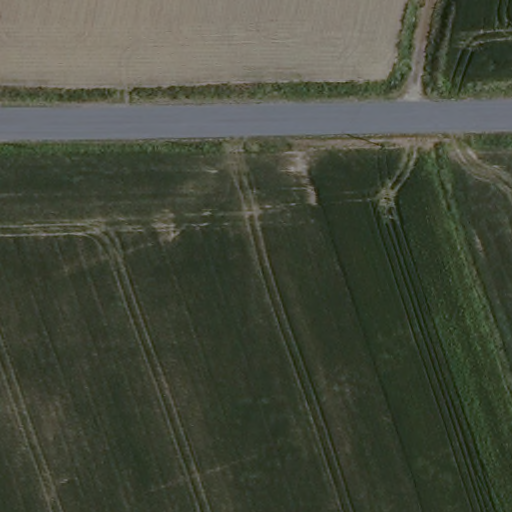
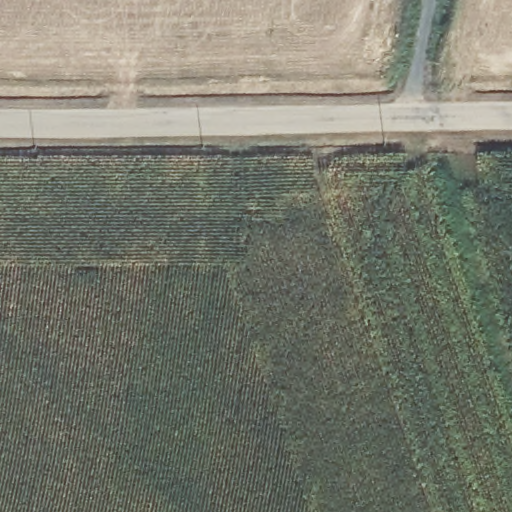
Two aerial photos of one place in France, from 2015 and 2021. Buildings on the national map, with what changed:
[]

